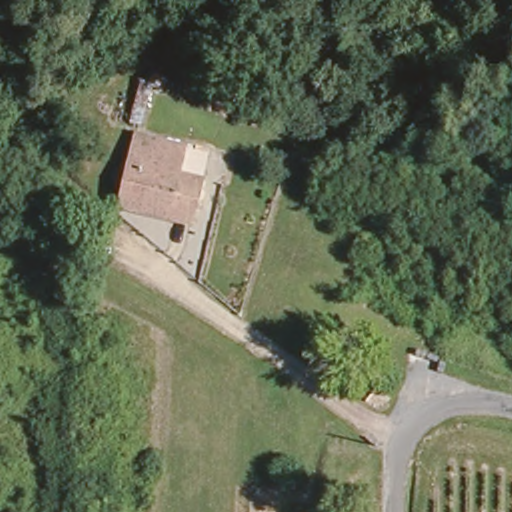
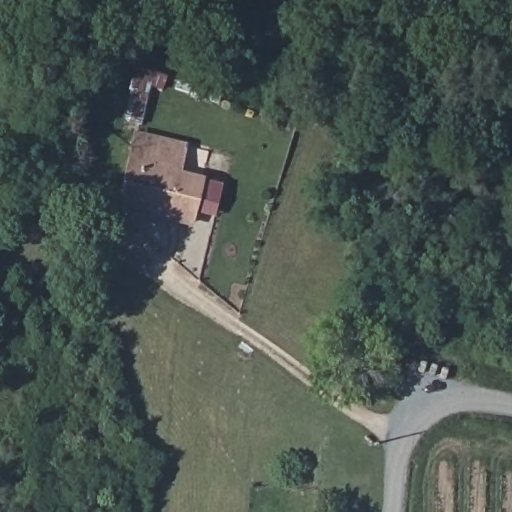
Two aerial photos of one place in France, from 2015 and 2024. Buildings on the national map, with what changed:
unchanged [(170,221),(120,209),(123,197),(137,135),(184,146),(178,174),(182,174),(203,179),(194,215),(192,226),(170,221)]

